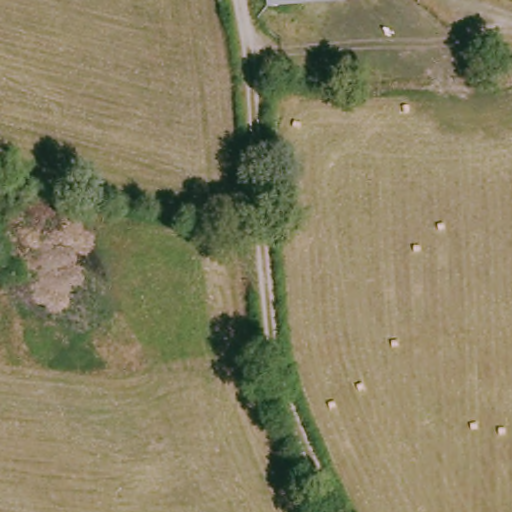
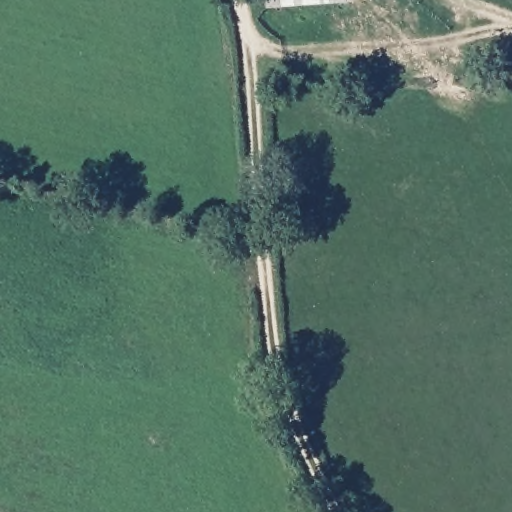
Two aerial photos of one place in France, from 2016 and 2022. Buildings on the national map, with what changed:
unchanged [(343,4),(265,6),(265,0),(342,0),(343,4)]

